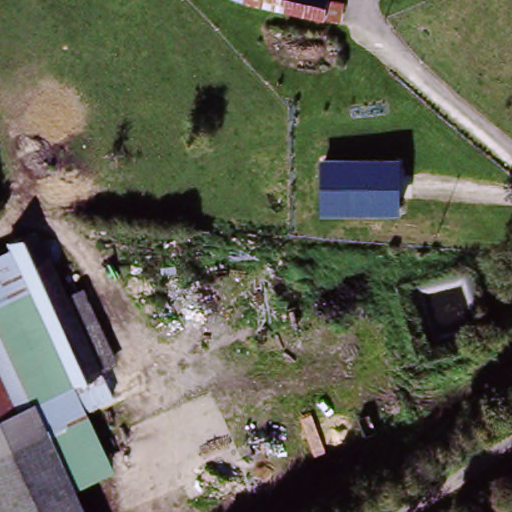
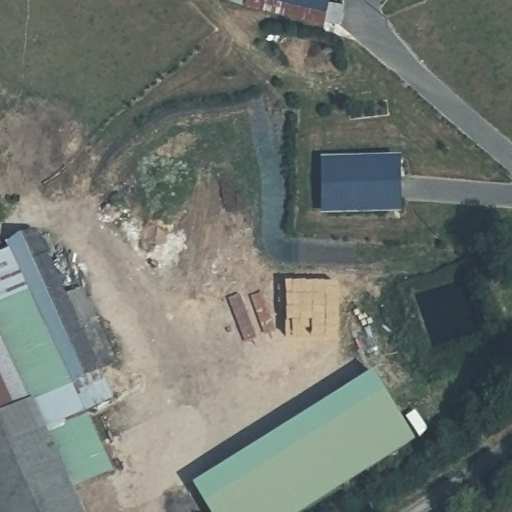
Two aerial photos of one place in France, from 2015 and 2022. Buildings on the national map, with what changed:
unchanged [(232,0),(326,0),(324,9),(338,11),(337,26),(322,22),(243,7),(231,4),(232,0)]
unchanged [(321,217),(320,159),(403,159),(402,217),(321,217)]
unchanged [(37,241),(80,332),(98,322),(117,365),(100,373),(111,406),(47,438),(46,435),(38,438),(28,412),(0,422),(0,256),(37,241)]
new [(416,446),(306,512),(208,512),(194,490),(376,377),(416,446)]
unchanged [(2,453),(38,438),(46,435),(47,438),(54,452),(82,512),(0,512),(0,454),(2,453)]

